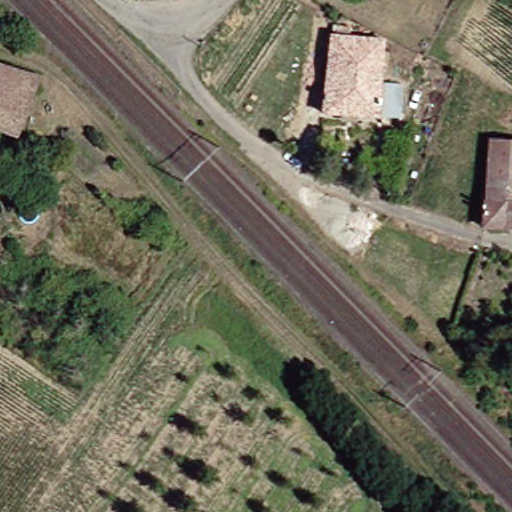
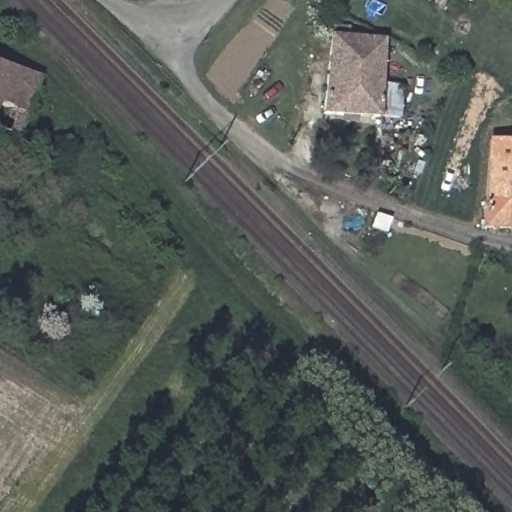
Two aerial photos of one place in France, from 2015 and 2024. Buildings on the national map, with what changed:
unchanged [(352,23),(352,37),(379,40),(371,115),(318,111),(326,21),(352,23)]
unchanged [(21,74),(1,135),(0,135),(0,67),(21,74)]
unchanged [(477,160),(478,143),(512,143),(512,228),(475,228),(477,160)]

